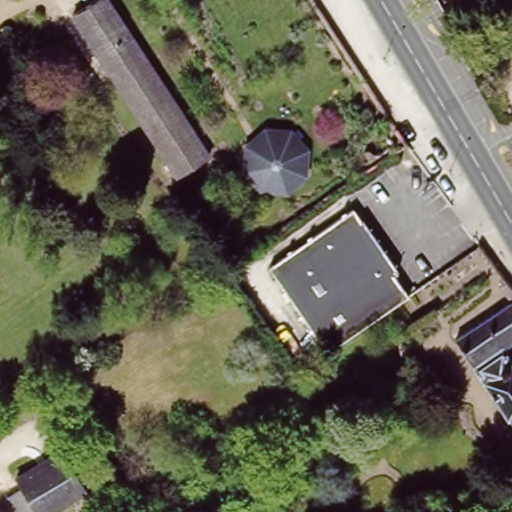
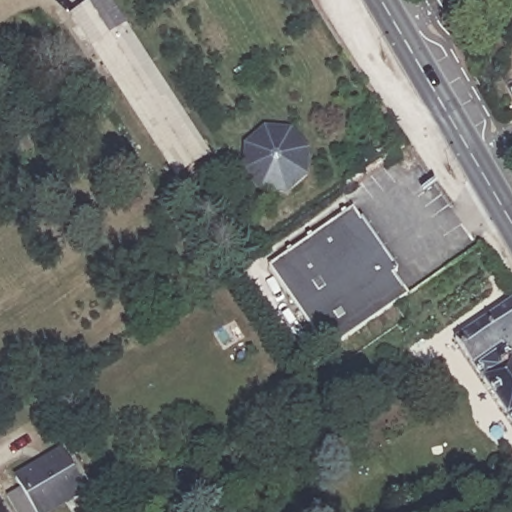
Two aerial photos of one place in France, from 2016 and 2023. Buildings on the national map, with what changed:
unchanged [(104,0),(105,0),(209,157),(176,180),(72,19),(104,0)]
unchanged [(264,125),(288,127),(306,146),(306,176),(287,194),(260,192),(241,174),(243,142),(264,125)]
unchanged [(354,212),(399,277),(395,281),(409,300),(328,356),(270,268),(354,212)]
unchanged [(512,290),(512,342),(502,349),(512,363),(512,422),(477,372),(451,334),(507,295),(496,278),(502,275),(505,281),(512,290)]
unchanged [(65,457),(86,494),(56,512),(15,512),(10,502),(22,493),(18,483),(65,457)]

